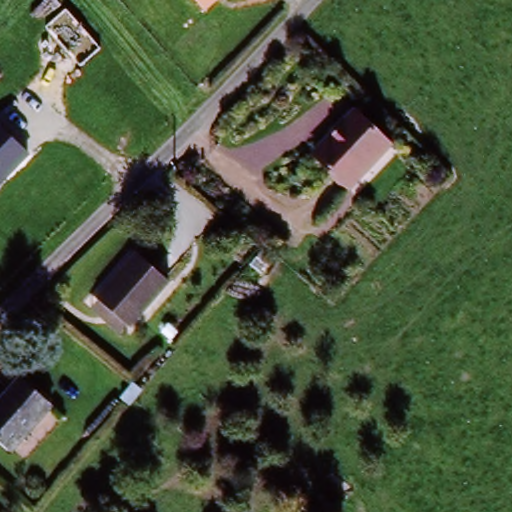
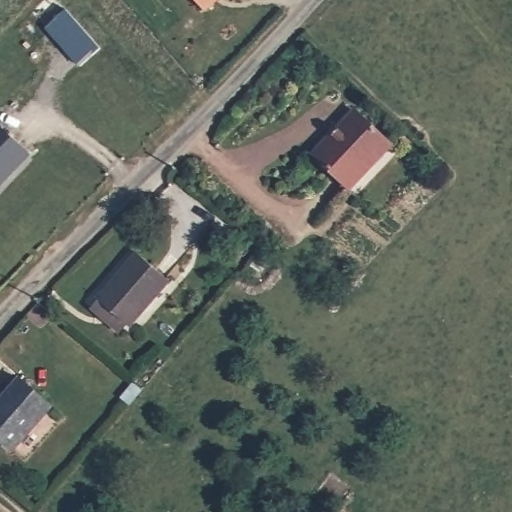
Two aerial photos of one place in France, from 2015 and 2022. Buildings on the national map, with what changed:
unchanged [(217,0),(205,11),(194,0),(217,0)]
new [(103,49),(81,69),(45,27),(66,9),(103,49)]
unchanged [(346,191),(310,159),(352,112),(388,145),(346,191)]
unchanged [(28,155),(0,183),(0,127),(28,155)]
unchanged [(134,252),(172,280),(135,327),(99,297),(134,252)]
unchanged [(53,405),(16,448),(0,435),(0,409),(24,380),(53,405)]

